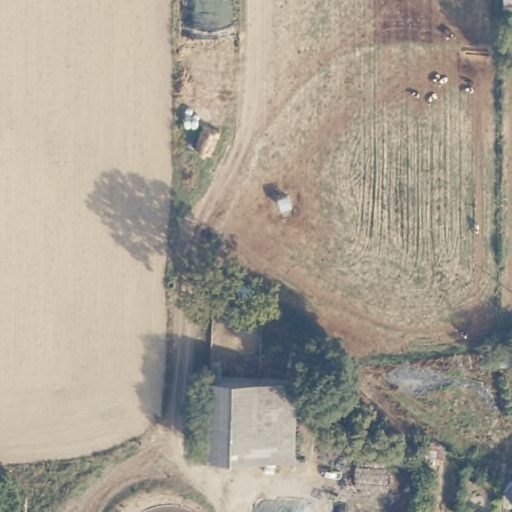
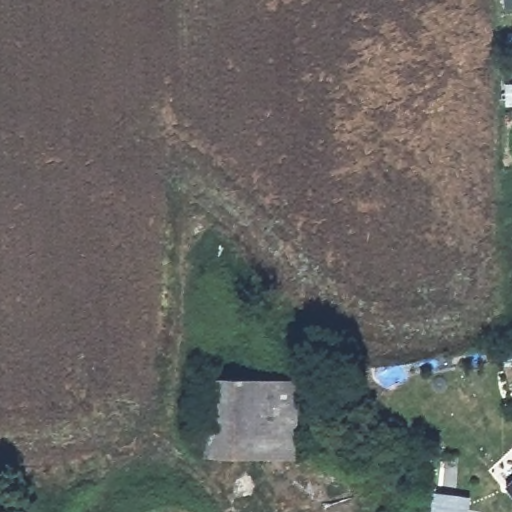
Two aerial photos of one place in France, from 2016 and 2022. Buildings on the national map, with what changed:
unchanged [(296,374),(300,451),(208,452),(204,377),(296,374)]
unchanged [(512,473),(512,476),(511,475),(512,473)]
new [(431,490),(470,495),(468,512),(427,512),(431,490)]

